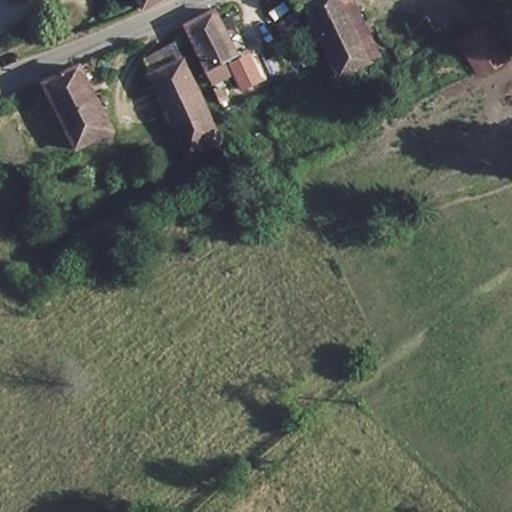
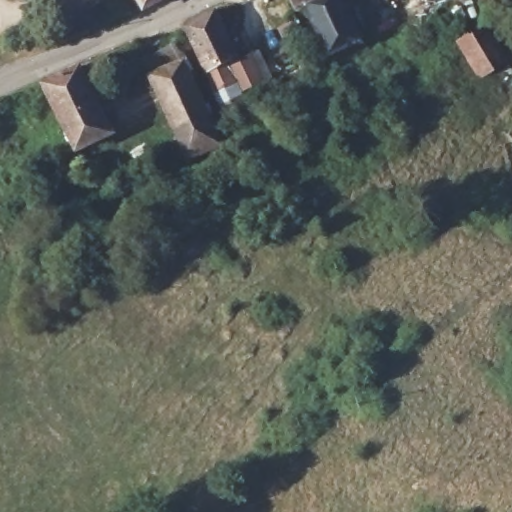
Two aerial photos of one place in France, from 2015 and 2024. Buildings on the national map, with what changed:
unchanged [(130,0),(142,0),(133,5),(130,0)]
unchanged [(366,60),(332,77),(295,7),(286,11),(281,0),(338,0),(333,3),(366,60)]
unchanged [(213,16),(231,60),(202,71),(183,29),(213,16)]
unchanged [(487,17),(512,59),(512,60),(474,80),(450,37),(487,17)]
unchanged [(185,152),(177,135),(142,58),(173,44),(208,120),(216,138),(185,152)]
unchanged [(40,80),(82,62),(110,128),(70,146),(42,86),(40,80)]

